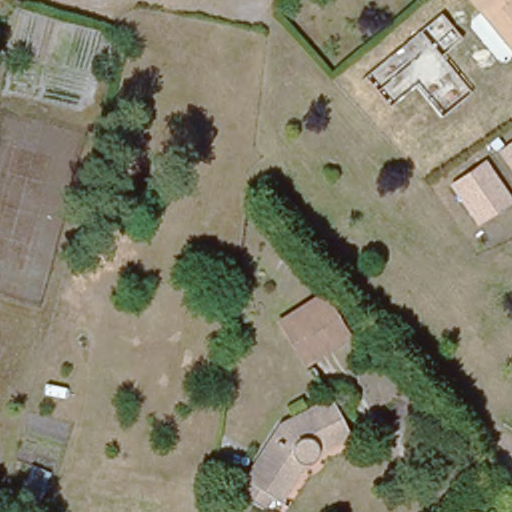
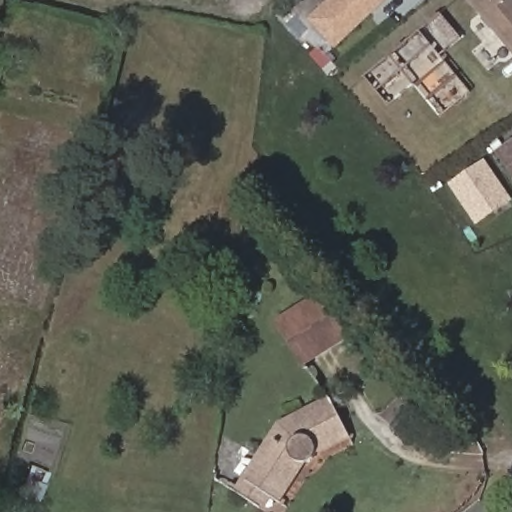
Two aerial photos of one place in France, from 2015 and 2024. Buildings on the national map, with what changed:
new [(307,20),(328,0),(388,0),(336,50),(307,20)]
unchanged [(465,0),(512,0),(512,47),(465,0)]
unchanged [(498,152),(512,143),(512,174),(498,152)]
unchanged [(476,224),(449,183),(484,160),(511,200),(476,224)]
unchanged [(318,296),(342,337),(301,362),(276,322),(318,296)]
unchanged [(240,478),(282,415),(329,390),(347,427),(319,442),(312,449),(302,454),(281,490),(272,484),(263,496),(240,478)]
unchanged [(10,492),(20,494),(17,510),(24,511),(24,512),(6,512),(10,492)]

